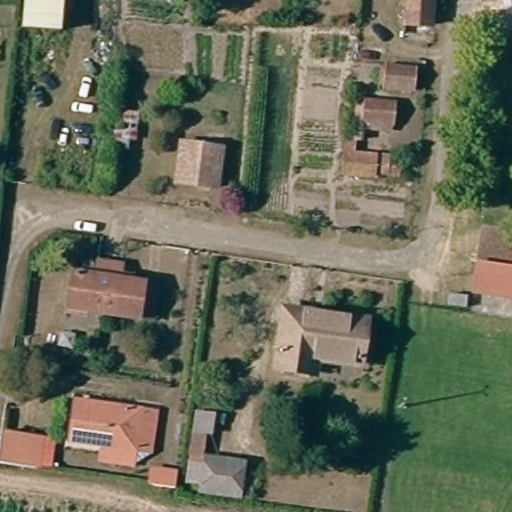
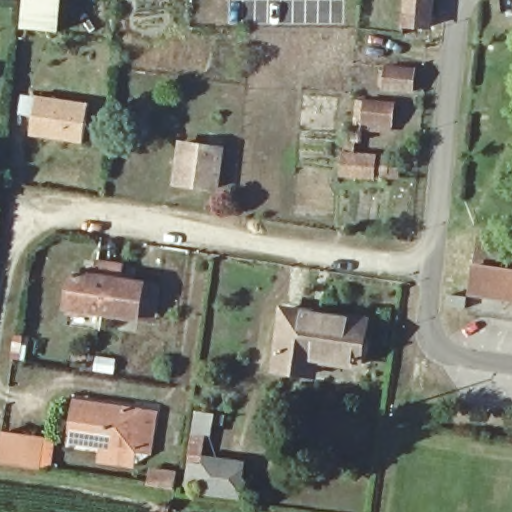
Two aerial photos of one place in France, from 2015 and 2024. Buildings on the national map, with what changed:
unchanged [(60,0),(60,6),(25,4),(25,0),(60,0)]
unchanged [(400,11),(400,0),(427,0),(425,13),(400,11)]
unchanged [(58,38),(22,34),(25,4),(60,6),(58,38)]
unchanged [(422,63),(422,88),(394,86),(394,59),(422,63)]
new [(90,103),(83,143),(30,136),(37,94),(90,103)]
unchanged [(343,140),(355,141),(355,97),(365,99),(395,102),(394,126),(382,125),(381,154),(394,157),(394,180),(341,179),(341,153),(343,140)]
unchanged [(217,150),(215,190),(175,187),(179,148),(217,150)]
unchanged [(476,269),(482,229),(512,233),(512,294),(473,289),(476,269)]
unchanged [(154,323),(139,321),(67,311),(72,273),(96,275),(97,265),(123,269),(121,279),(144,282),(159,284),(154,323)]
unchanged [(362,320),(357,363),(313,357),(312,370),(276,364),(283,308),(362,320)]
unchanged [(149,448),(148,455),(134,464),(131,464),(131,467),(98,461),(100,446),(68,441),(75,400),(155,414),(149,448)]
unchanged [(43,436),(41,449),(40,466),(0,459),(0,432),(0,429),(27,434),(43,436)]
unchanged [(203,495),(205,482),(186,480),(187,464),(203,466),(204,457),(245,461),(241,499),(203,495)]
unchanged [(179,489),(150,484),(152,471),(180,474),(179,489)]

